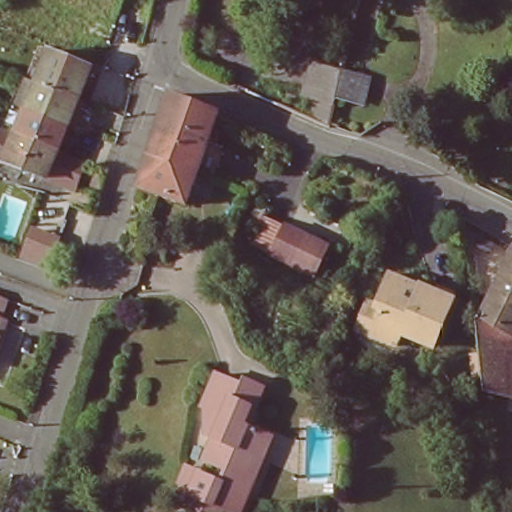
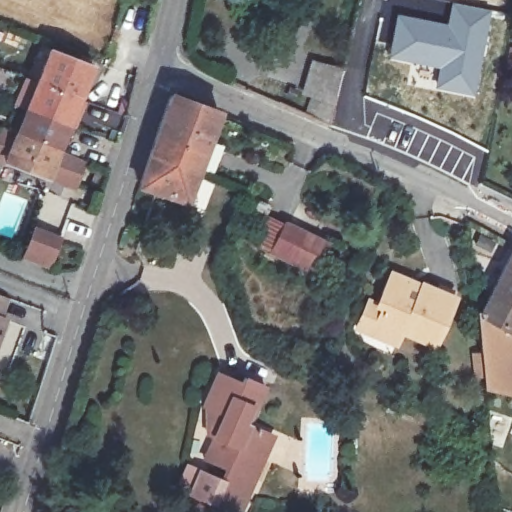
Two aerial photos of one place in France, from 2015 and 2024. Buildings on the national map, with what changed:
new [(396,13),(446,23),(451,1),(493,10),(476,98),(435,89),(438,69),(388,59),(396,13)]
new [(512,45),(512,72),(504,71),(509,45),(512,45)]
unchanged [(87,73),(90,74),(76,107),(37,92),(51,59),(63,63),(66,56),(90,64),(87,73)]
unchanged [(332,65),(360,72),(354,98),(326,90),(332,65)]
unchanged [(15,144),(21,126),(25,120),(37,92),(76,107),(65,136),(54,131),(52,131),(48,144),(61,149),(56,160),(55,159),(54,159),(44,185),(3,170),(5,166),(0,164),(0,138),(15,144)]
unchanged [(215,117),(216,117),(192,180),(144,162),(168,99),(215,117)]
unchanged [(123,159),(116,183),(94,175),(101,150),(123,159)]
unchanged [(135,189),(144,162),(192,180),(182,207),(135,190),(135,189)]
unchanged [(313,279),(247,246),(260,213),(328,247),(313,279)]
new [(41,234),(69,242),(66,251),(60,272),(55,273),(33,264),(36,253),(41,234)]
unchanged [(481,392),(472,316),(479,317),(490,296),(511,252),(512,253),(512,331),(511,333),(512,334),(512,396),(497,394),(481,392)]
unchanged [(387,274),(406,282),(409,289),(416,290),(419,287),(452,300),(433,349),(401,336),(396,347),(368,335),(354,329),(365,304),(374,308),(387,274)]
unchanged [(4,296),(4,297),(0,308),(0,295),(4,296)]
unchanged [(3,319),(0,325),(0,318),(3,319)]
unchanged [(243,512),(183,512),(201,468),(205,456),(214,435),(202,431),(209,415),(204,414),(219,378),(241,387),(244,380),(268,390),(259,413),(251,430),(274,439),(264,463),(255,488),(253,488),(243,512)]

